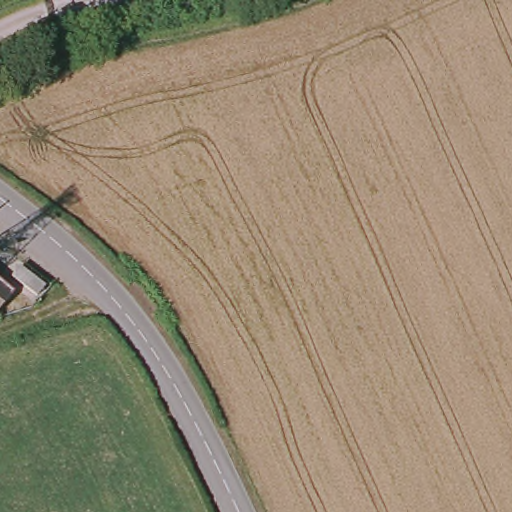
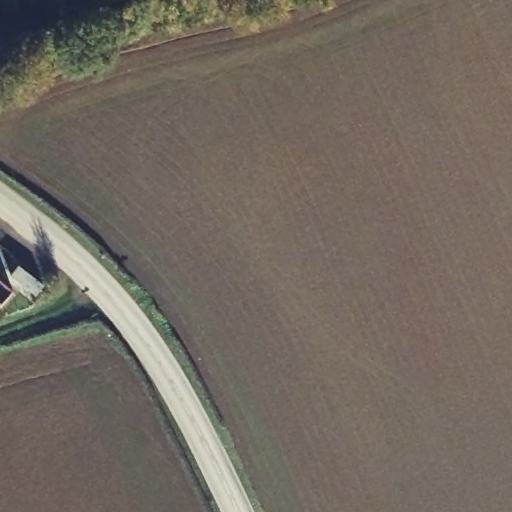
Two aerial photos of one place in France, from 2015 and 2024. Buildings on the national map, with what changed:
unchanged [(13,293),(0,309),(0,282),(13,293)]

